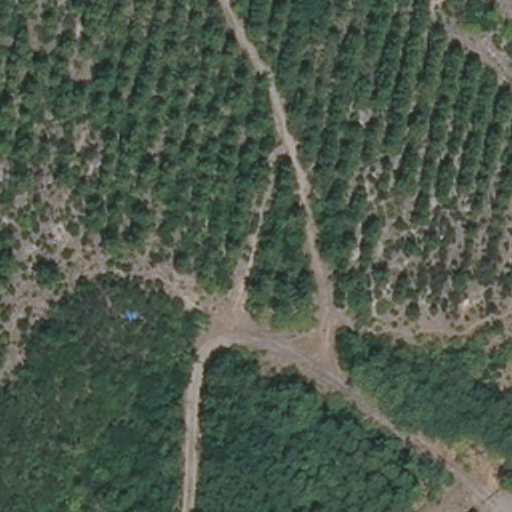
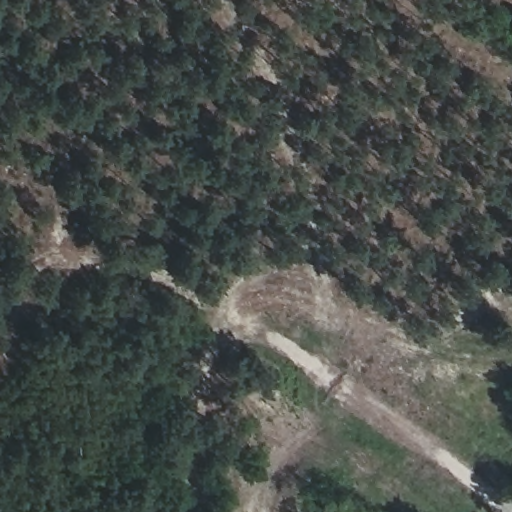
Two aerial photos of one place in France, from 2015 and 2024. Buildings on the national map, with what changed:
[]

